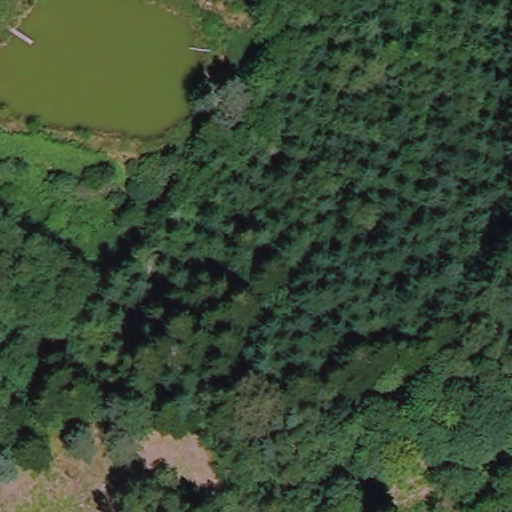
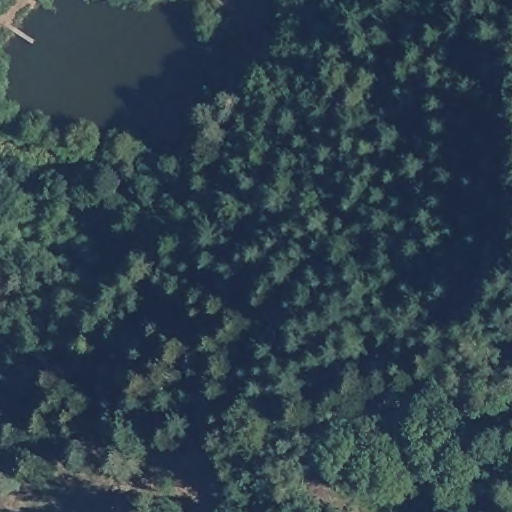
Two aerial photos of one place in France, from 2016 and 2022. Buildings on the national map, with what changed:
[]

